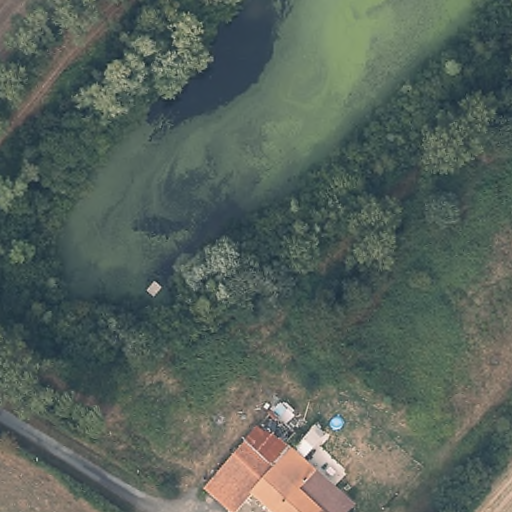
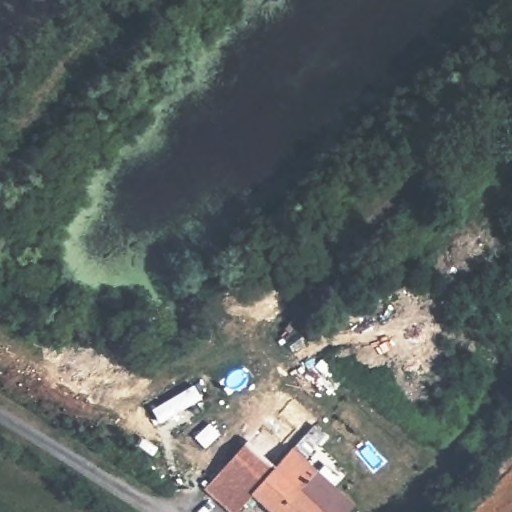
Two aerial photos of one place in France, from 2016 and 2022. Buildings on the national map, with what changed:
unchanged [(283,398),(323,433),(301,458),(291,448),(272,467),(245,437),(283,398)]
unchanged [(248,491),(221,461),(245,437),(272,467),(248,491)]
unchanged [(272,467),(291,448),(301,458),(350,506),(344,512),(269,512),(248,491),(272,467)]
unchanged [(227,509),(200,480),(221,461),(248,491),(227,509)]

